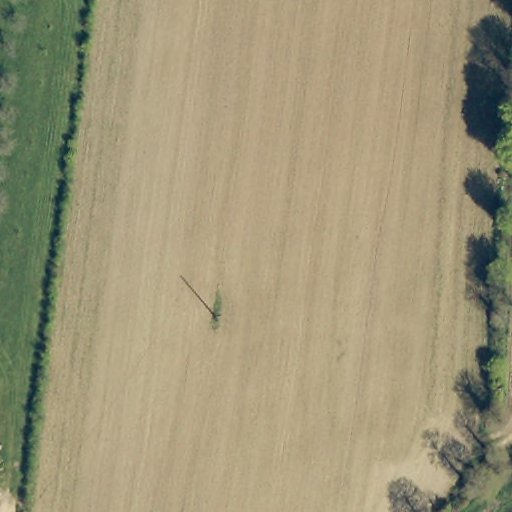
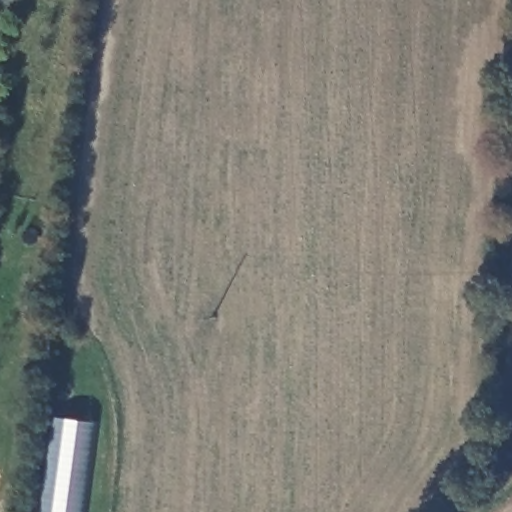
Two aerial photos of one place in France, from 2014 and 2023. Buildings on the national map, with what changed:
new [(97,422),(87,512),(45,512),(59,417),(97,422)]

